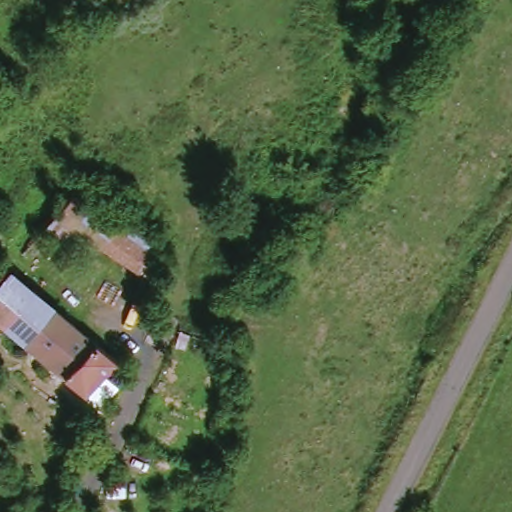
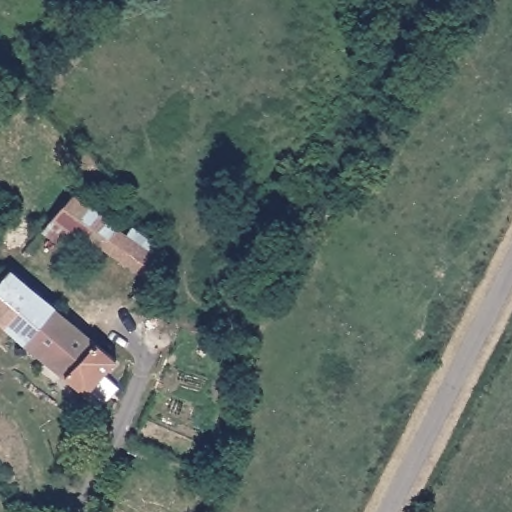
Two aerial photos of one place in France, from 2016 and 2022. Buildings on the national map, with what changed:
unchanged [(164,247),(153,277),(161,281),(152,298),(147,294),(141,302),(119,291),(130,273),(75,239),(67,252),(37,234),(77,193),(164,247)]
unchanged [(0,325),(0,277),(7,268),(112,365),(81,398),(0,325)]

